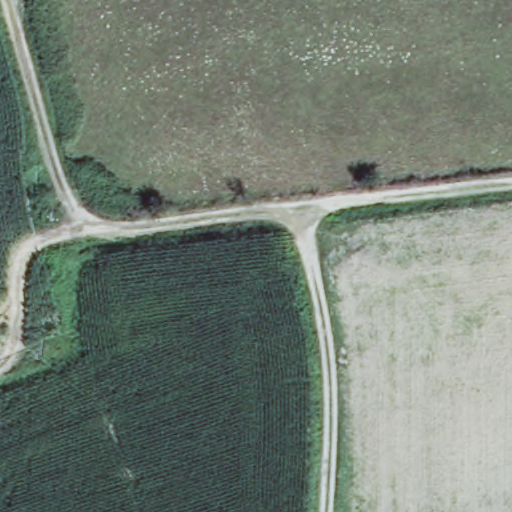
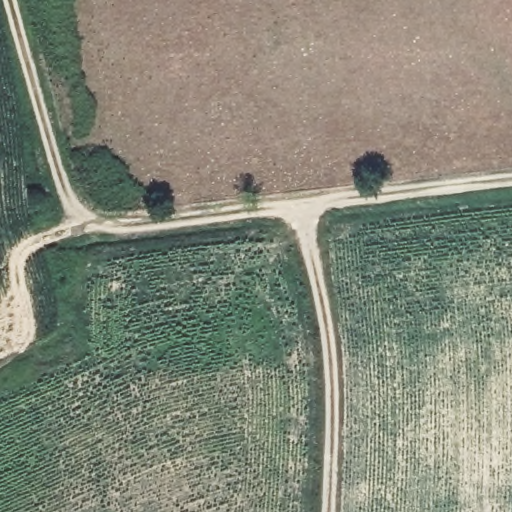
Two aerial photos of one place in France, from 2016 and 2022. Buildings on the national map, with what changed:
[]

